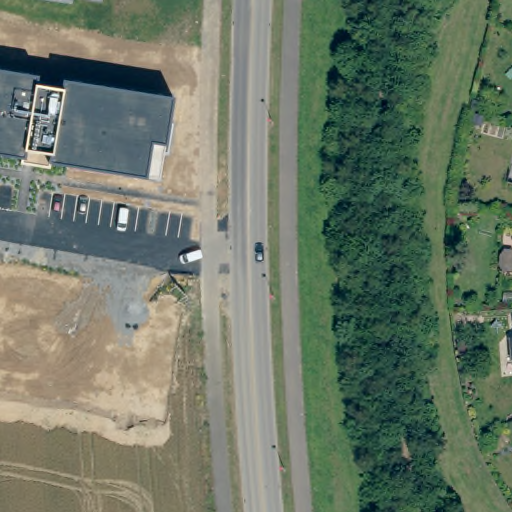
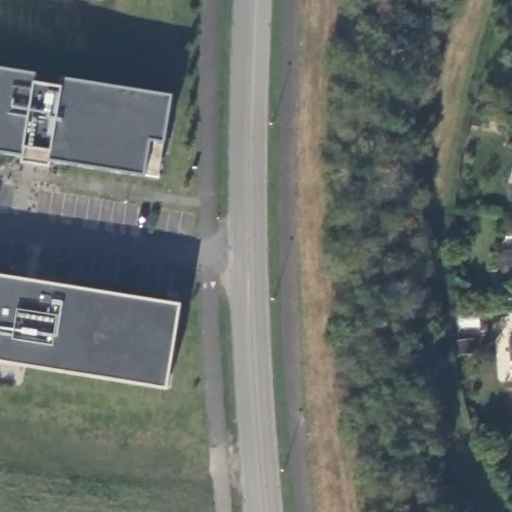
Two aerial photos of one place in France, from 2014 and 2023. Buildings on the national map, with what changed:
unchanged [(150,140),(145,176),(49,161),(50,152),(25,148),(24,156),(0,152),(0,68),(36,74),(35,83),(60,86),(61,79),(170,96),(165,143),(150,140)]
new [(166,390),(0,362),(0,276),(180,305),(166,390)]

